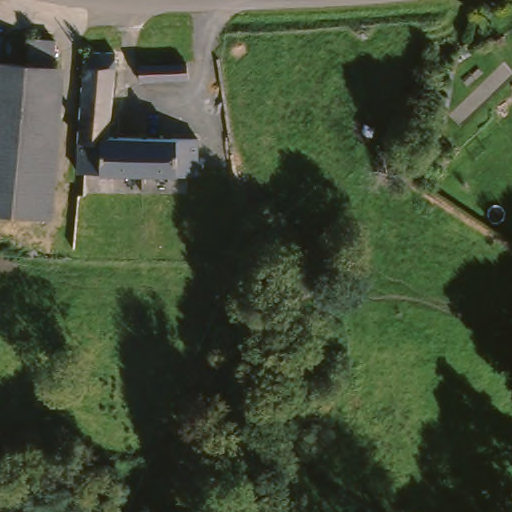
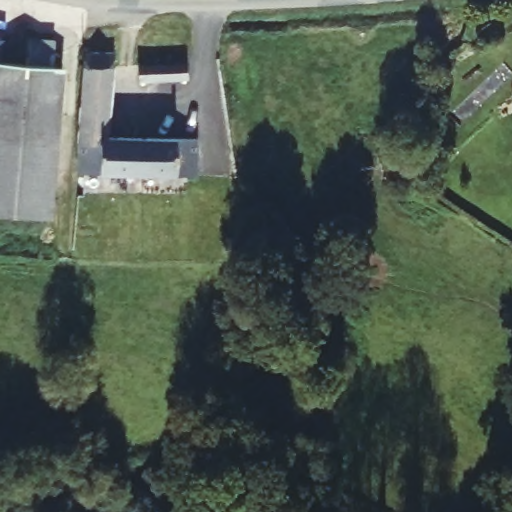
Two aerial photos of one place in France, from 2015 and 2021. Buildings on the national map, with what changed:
unchanged [(206,136),(205,171),(80,169),(82,130),(88,55),(88,37),(119,42),(120,56),(115,132),(206,136)]
unchanged [(0,120),(0,61),(33,64),(35,42),(61,41),(59,50),(54,125),(16,122),(0,120)]
unchanged [(182,59),(181,86),(148,84),(149,57),(182,59)]
unchanged [(54,125),(44,219),(0,217),(0,120),(16,122),(54,125)]

